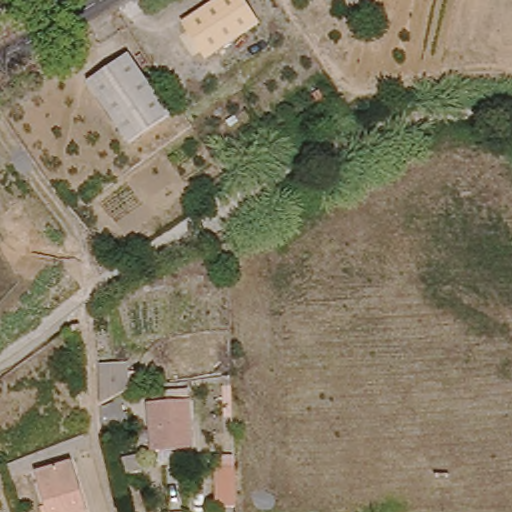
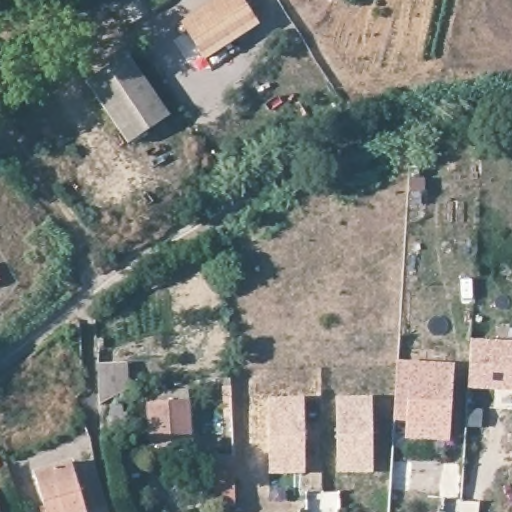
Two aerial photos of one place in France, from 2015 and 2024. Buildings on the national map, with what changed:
unchanged [(262,22),(211,55),(188,19),(217,0),(248,0),(262,22)]
unchanged [(73,37),(82,32),(87,39),(78,44),(73,37)]
unchanged [(129,58),(170,120),(128,147),(88,85),(129,58)]
demolished [(82,331),(82,322),(89,322),(90,330),(82,331)]
unchanged [(512,339),(512,386),(464,384),(466,337),(512,339)]
new [(400,414),(402,359),(457,361),(454,434),(421,433),(414,432),(415,415),(400,414)]
unchanged [(130,360),(132,387),(101,405),(99,361),(130,360)]
new [(373,396),(374,472),(336,472),(334,396),(373,396)]
new [(266,409),(266,398),(305,397),(306,474),(268,474),(266,422),(266,409)]
unchanged [(190,404),(188,448),(148,447),(151,402),(190,404)]
unchanged [(48,512),(36,467),(73,457),(88,511),(83,512),(48,512)]
unchanged [(221,507),(222,468),(241,468),(241,507),(221,507)]

